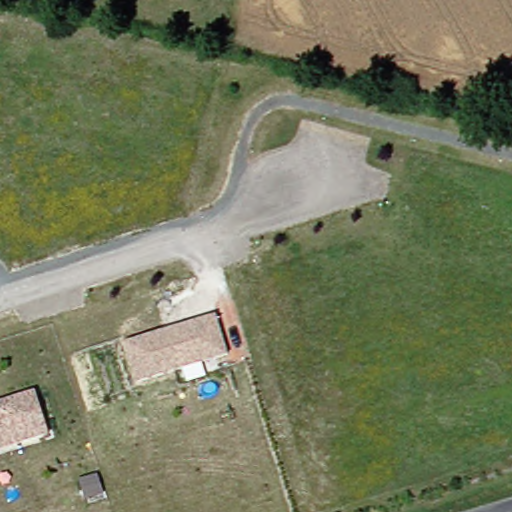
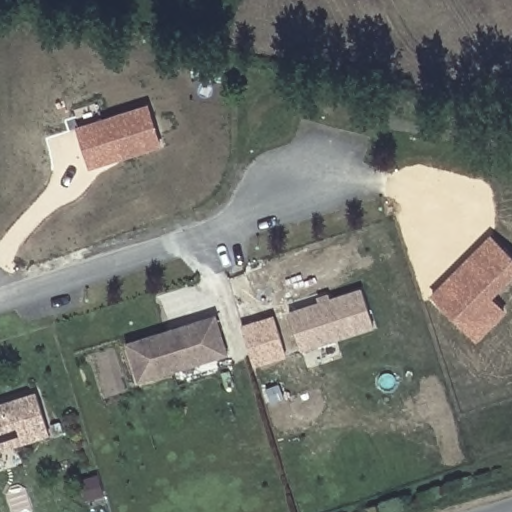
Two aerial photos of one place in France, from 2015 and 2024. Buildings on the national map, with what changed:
new [(161,146),(91,169),(77,125),(148,103),(161,146)]
new [(492,296),(507,310),(477,340),(430,293),(491,232),(512,255),(512,278),(492,296)]
new [(361,288),(374,329),(302,352),(289,311),(361,288)]
unchanged [(215,315),(229,356),(137,385),(125,343),(215,315)]
new [(286,357),(255,367),(242,324),(274,315),(286,357)]
unchanged [(46,435),(12,445),(0,449),(0,403),(32,393),(46,435)]

